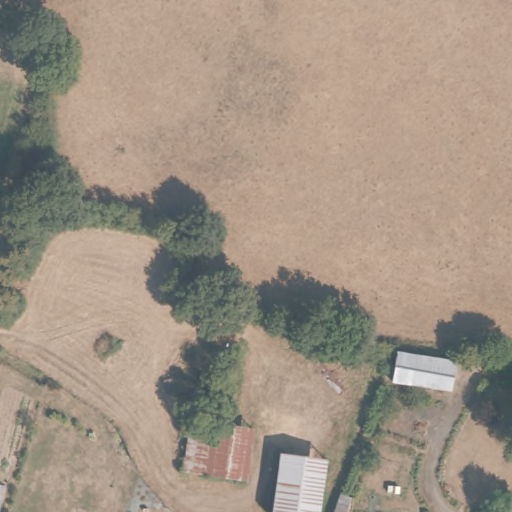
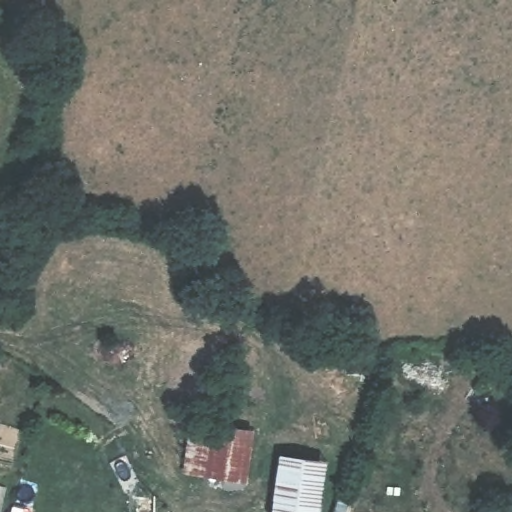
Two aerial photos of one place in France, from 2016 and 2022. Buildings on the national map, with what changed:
unchanged [(462,368),(459,397),(388,387),(392,360),(462,368)]
unchanged [(240,433),(236,479),(200,475),(208,430),(240,433)]
unchanged [(324,467),(315,512),(270,512),(280,458),(324,467)]

